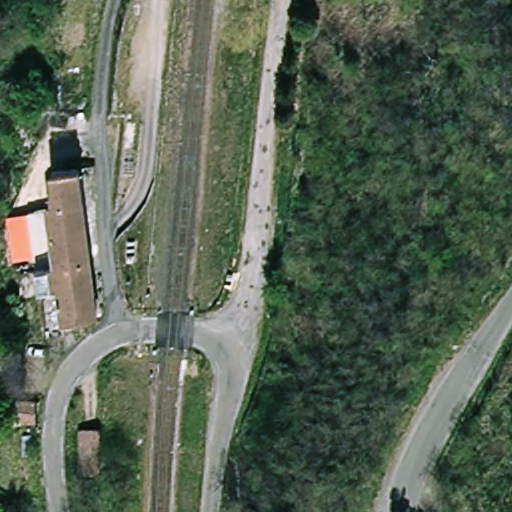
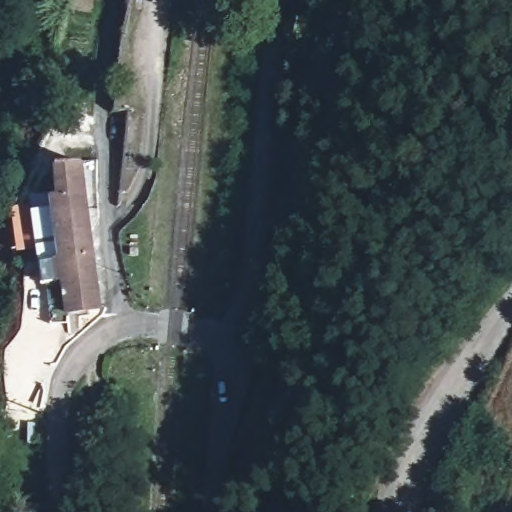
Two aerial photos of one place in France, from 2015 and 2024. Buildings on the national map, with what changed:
unchanged [(30,205),(52,202),(51,195),(59,194),(54,165),(82,161),(102,305),(68,312),(70,320),(50,324),(46,308),(45,308),(30,205)]
unchanged [(186,369),(187,358),(199,359),(198,369),(186,369)]
unchanged [(44,408),(20,405),(21,386),(46,388),(44,408)]
unchanged [(107,463),(87,462),(88,424),(107,424),(107,463)]

